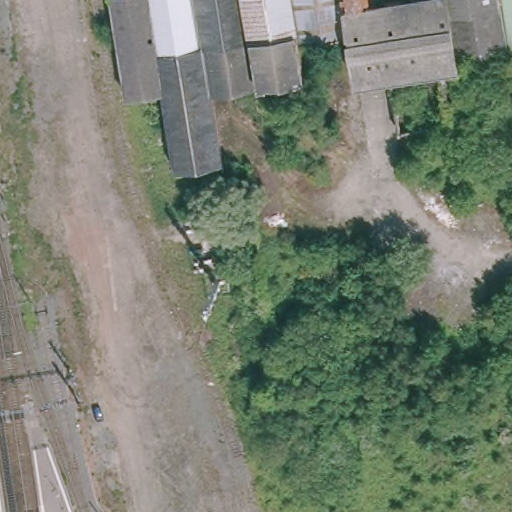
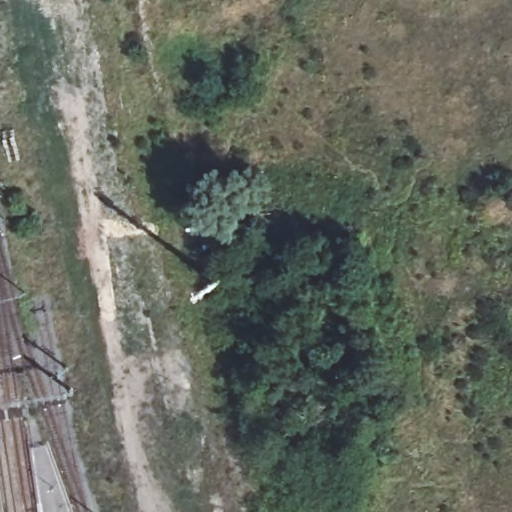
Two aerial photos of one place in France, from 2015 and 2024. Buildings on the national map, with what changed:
demolished [(461,53),(462,64),(356,81),(348,31),(303,39),(309,74),(259,81),(214,88),(226,160),(178,166),(166,90),(128,96),(110,0),(512,0),(512,60),(509,44),(461,53)]

